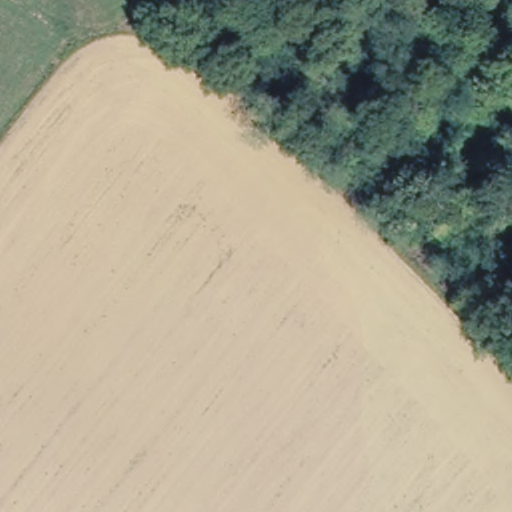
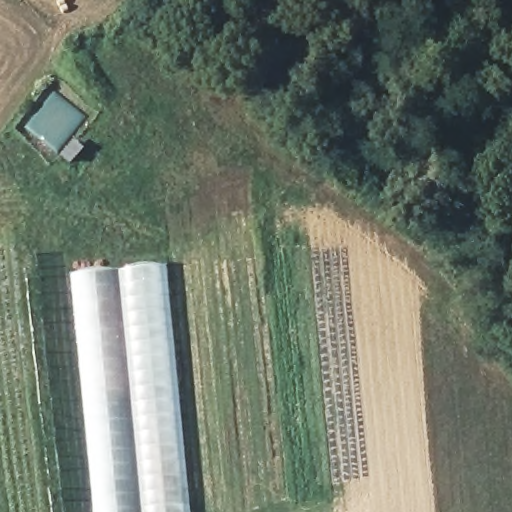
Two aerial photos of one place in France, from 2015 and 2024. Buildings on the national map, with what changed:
new [(169,267),(191,512),(96,512),(73,274),(169,267)]

